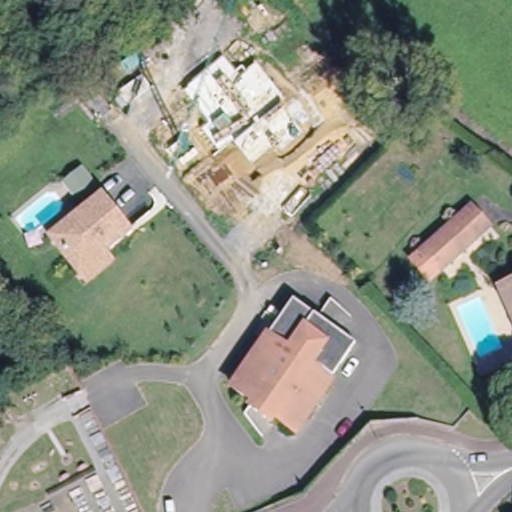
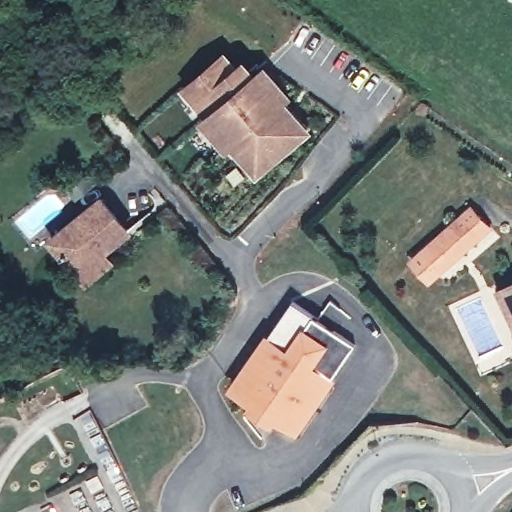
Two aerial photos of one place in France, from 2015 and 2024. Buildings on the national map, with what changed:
new [(229,145),(228,146),(220,152),(202,131),(210,125),(207,121),(215,114),(201,96),(197,100),(188,89),(223,60),(235,74),(242,68),(249,76),(259,68),(264,74),(285,99),(283,100),(308,129),(304,133),(282,151),(254,174),(229,145)]
unchanged [(90,184),(72,199),(60,185),(78,170),(90,184)]
unchanged [(84,282),(76,273),(49,240),(98,200),(125,232),(100,253),(109,263),(84,282)]
unchanged [(422,247),(458,218),(473,205),(482,215),(493,227),(478,239),(441,269),(422,247)]
unchanged [(504,284),(512,280),(512,301),(504,284)]
unchanged [(291,437),(273,424),(269,429),(245,413),(248,408),(230,395),(290,308),(353,349),(291,437)]

